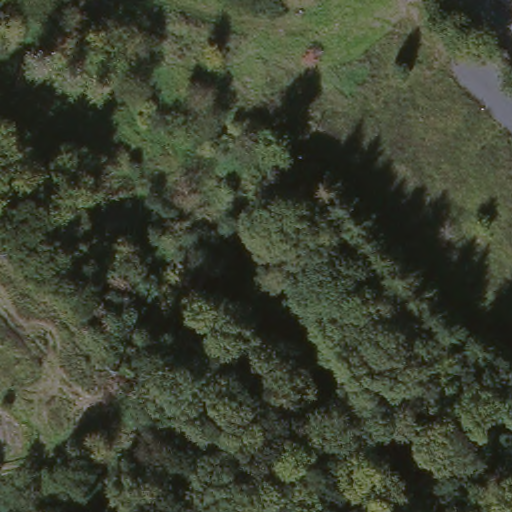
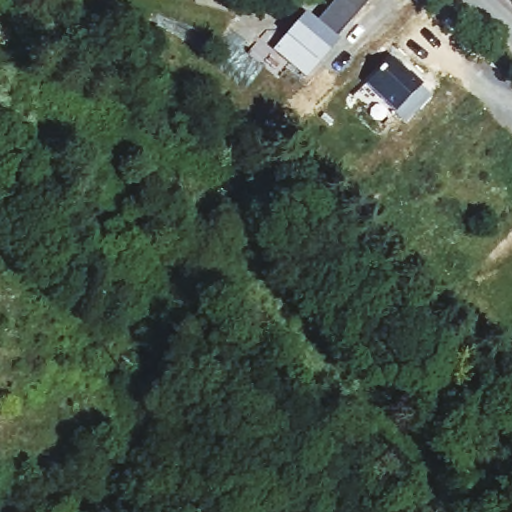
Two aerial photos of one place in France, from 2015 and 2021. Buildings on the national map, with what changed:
new [(332,0),(333,0),(352,15),(329,41),(332,43),(304,75),(272,47),(299,15),(312,25),(332,0)]
new [(421,85),(419,87),(428,96),(402,123),(363,83),(389,56),(421,85)]

